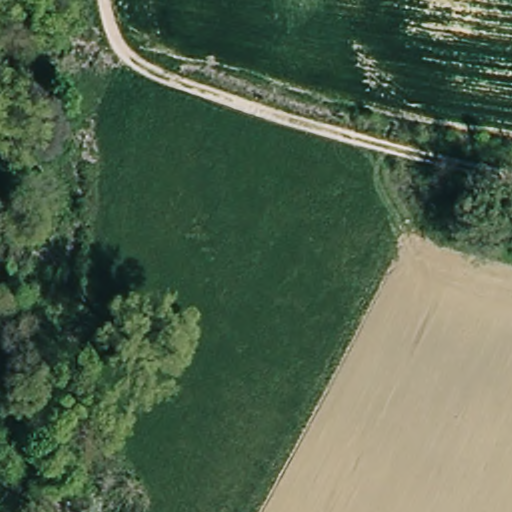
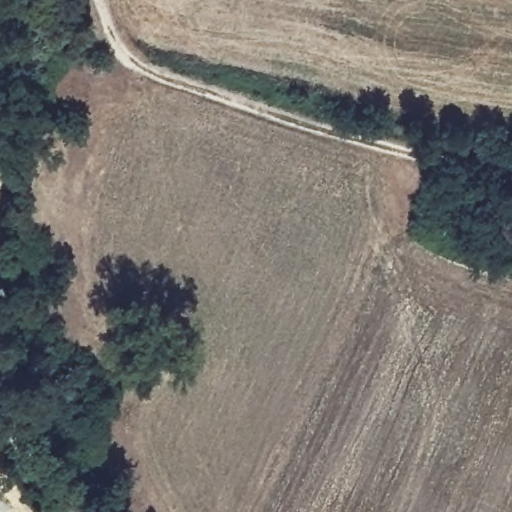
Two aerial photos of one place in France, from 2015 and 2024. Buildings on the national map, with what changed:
[]

